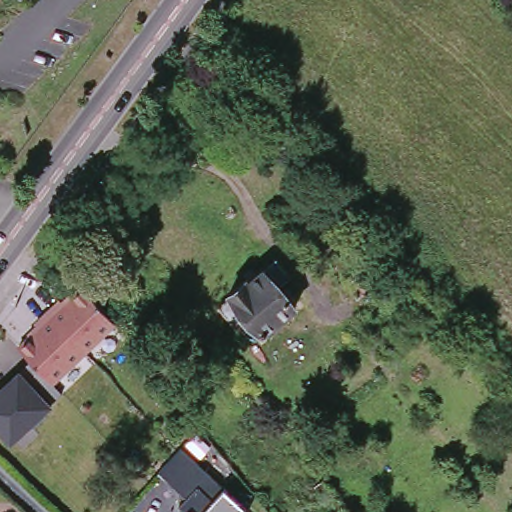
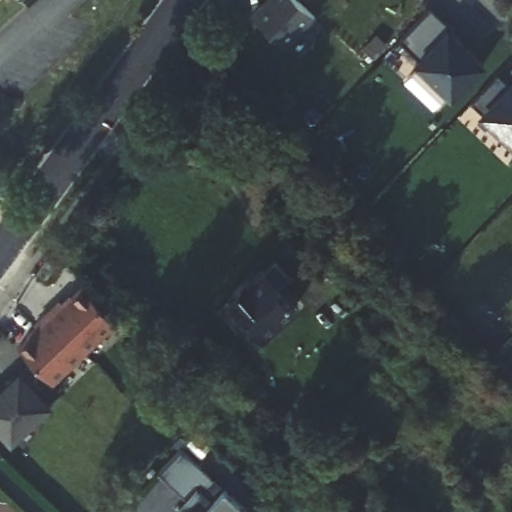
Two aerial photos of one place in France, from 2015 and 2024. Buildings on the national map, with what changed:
unchanged [(15,0),(23,0),(20,4),(15,0)]
new [(284,46),(251,14),(263,0),(299,0),(314,14),(284,46)]
new [(419,59),(398,40),(430,7),(451,28),(448,30),(484,64),(452,98),(415,63),(419,59)]
new [(497,74),(510,86),(512,84),(512,142),(470,102),(497,74)]
unchanged [(291,275),(278,286),(295,306),(262,333),(249,317),(235,328),(218,308),(232,297),(230,294),(247,279),(249,282),(276,259),(291,275)]
unchanged [(51,269),(46,275),(39,271),(44,264),(51,269)]
unchanged [(31,359),(16,342),(35,324),(33,322),(60,298),(62,300),(79,285),(117,324),(54,384),(61,393),(49,401),(53,406),(11,444),(0,431),(0,388),(21,369),(31,359)]
unchanged [(225,491),(246,512),(185,512),(179,504),(185,498),(158,473),(181,448),(225,491)]

